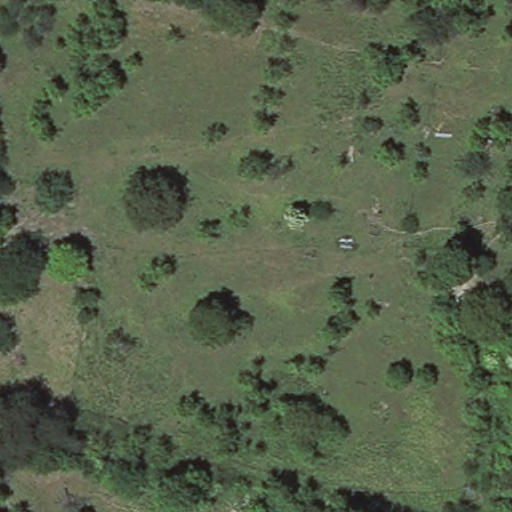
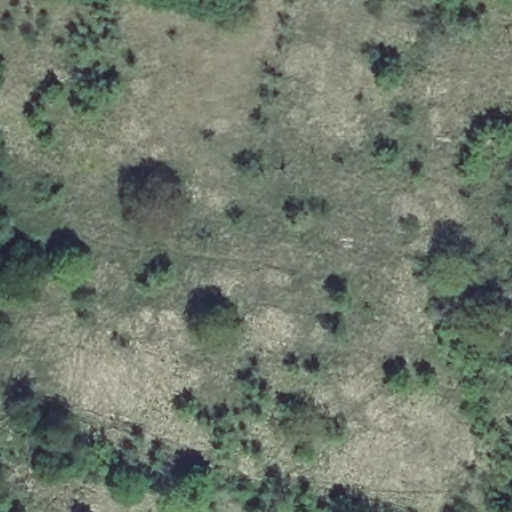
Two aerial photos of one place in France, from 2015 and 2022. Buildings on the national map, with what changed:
unchanged [(312,212),(306,229),(281,224),(287,206),(312,212)]
unchanged [(500,397),(497,414),(480,411),(486,389),(500,397)]

